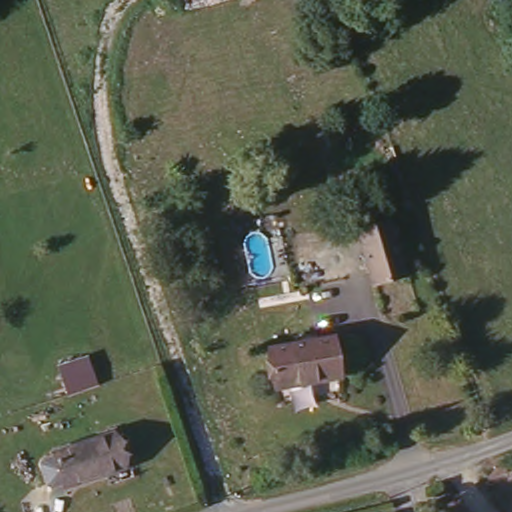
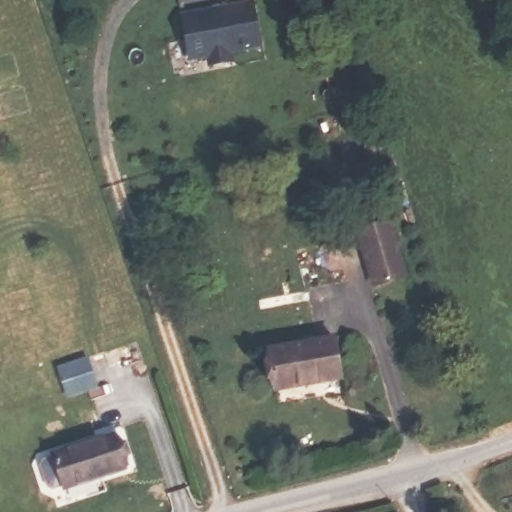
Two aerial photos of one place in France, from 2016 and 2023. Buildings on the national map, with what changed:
new [(248,4),(255,53),(179,61),(175,11),(248,4)]
unchanged [(414,281),(377,293),(355,230),(391,219),(414,281)]
unchanged [(337,334),(343,376),(273,384),(267,343),(337,334)]
unchanged [(59,366),(88,356),(98,384),(69,394),(59,366)]
unchanged [(40,454),(60,447),(121,426),(133,463),(72,484),(52,492),(40,454)]

